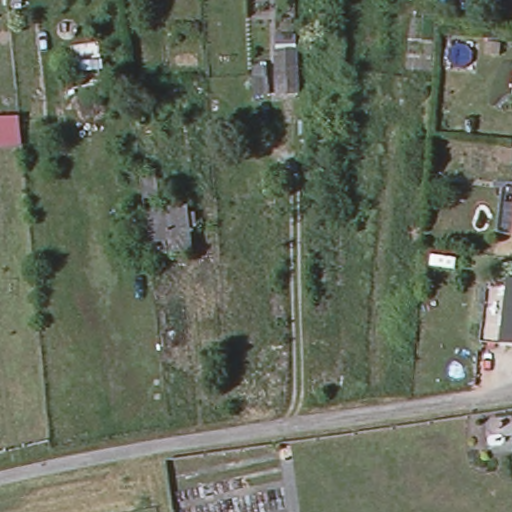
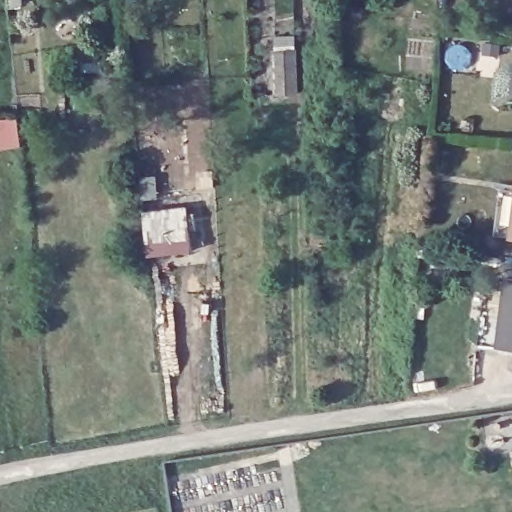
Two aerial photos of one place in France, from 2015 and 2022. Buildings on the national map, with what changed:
unchanged [(0,149),(0,117),(17,115),(21,147),(0,149)]
unchanged [(157,150),(160,190),(170,189),(172,208),(186,207),(190,252),(144,256),(135,151),(157,150)]
unchanged [(505,185),(512,185),(512,231),(500,230),(505,185)]
unchanged [(503,339),(511,280),(512,273),(512,274),(512,340),(510,340),(503,339)]
unchanged [(482,337),(490,277),(511,280),(503,339),(482,337)]

